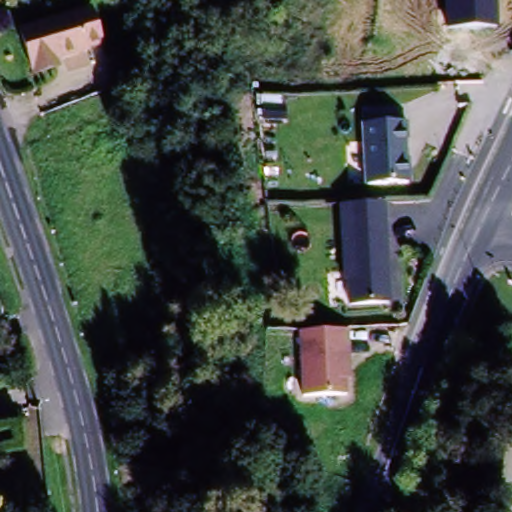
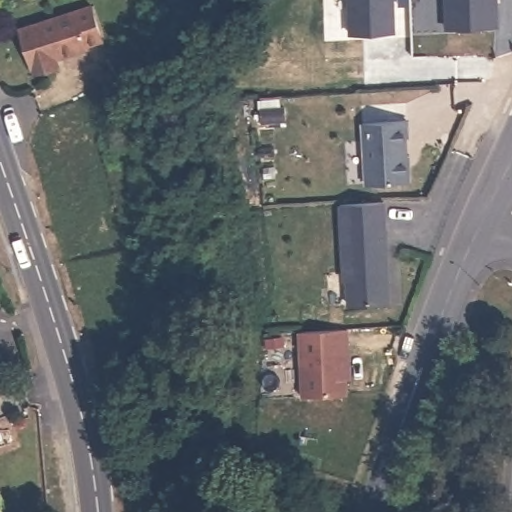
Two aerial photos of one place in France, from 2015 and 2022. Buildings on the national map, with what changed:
new [(391,34),(348,35),(349,0),(391,0),(391,34)]
unchanged [(498,25),(445,27),(444,0),(497,0),(498,25)]
unchanged [(106,42),(34,64),(22,26),(96,5),(106,42)]
unchanged [(362,121),(406,116),(410,181),(363,186),(362,121)]
unchanged [(340,204),(383,201),(387,302),(350,305),(340,204)]
unchanged [(348,327),(352,389),(305,392),(303,326),(348,327)]

